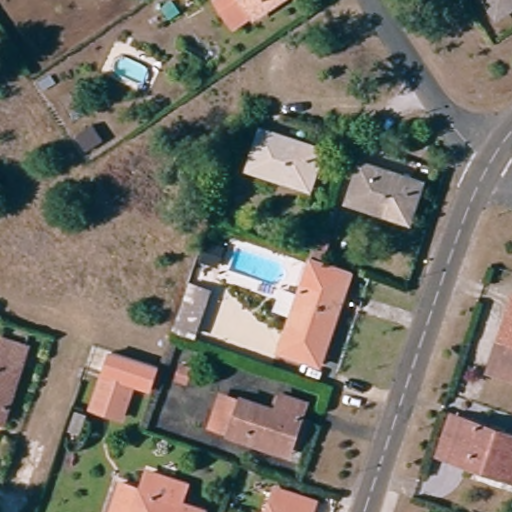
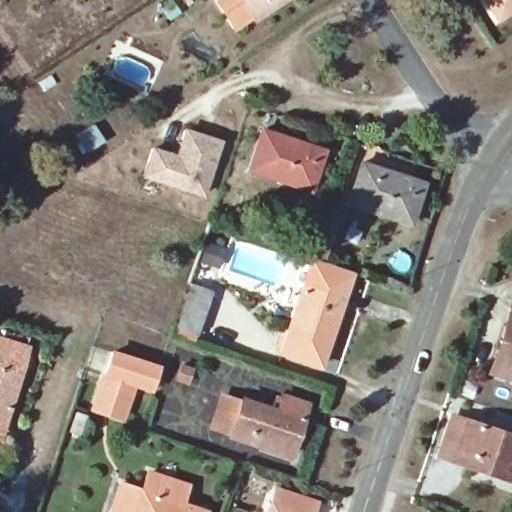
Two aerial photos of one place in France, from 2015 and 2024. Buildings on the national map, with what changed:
unchanged [(263,12),(259,10),(238,25),(221,0),(280,0),(263,12)]
unchanged [(506,19),(493,0),(512,0),(512,14),(506,19)]
unchanged [(105,139),(89,150),(79,135),(94,123),(105,139)]
new [(221,139),(203,197),(141,176),(150,145),(175,152),(184,127),(221,139)]
unchanged [(267,128),(329,149),(317,187),(254,168),(267,128)]
unchanged [(367,161),(429,181),(416,220),(354,201),(367,161)]
unchanged [(207,243),(222,247),(216,267),(202,263),(207,243)]
unchanged [(319,253),(357,266),(326,359),(288,347),(319,253)]
unchanged [(193,291),(205,294),(193,331),(179,327),(193,291)]
unchanged [(512,326),(512,364),(511,364),(500,360),(512,326)]
unchanged [(1,418),(0,417),(0,337),(24,344),(1,418)]
unchanged [(110,360),(160,376),(154,396),(134,389),(123,424),(93,415),(110,360)]
unchanged [(288,390),(312,398),(295,449),(238,430),(227,426),(239,390),(250,394),(283,405),(288,390)]
unchanged [(466,449),(449,444),(456,423),(461,406),(512,423),(512,465),(466,449)]
unchanged [(187,486),(182,502),(208,511),(208,512),(111,512),(121,482),(144,489),(149,474),(187,486)]
unchanged [(319,495),(313,512),(270,512),(280,482),(319,495)]

